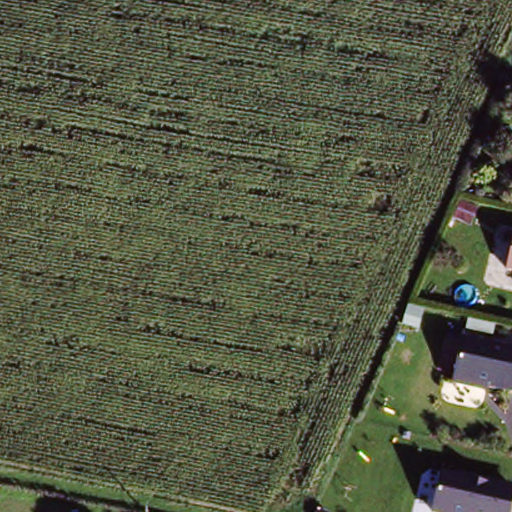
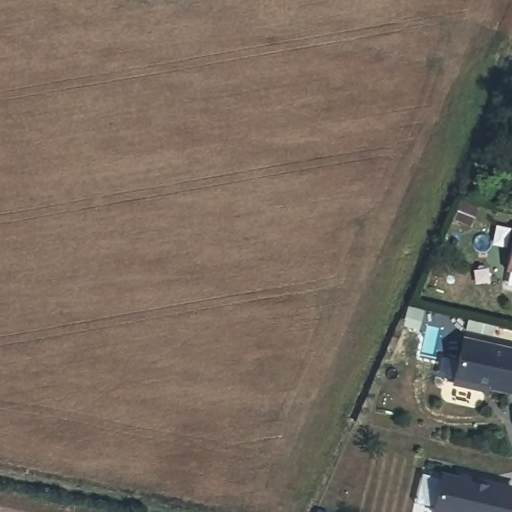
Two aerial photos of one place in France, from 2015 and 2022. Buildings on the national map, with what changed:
unchanged [(512,225),(512,269),(504,267),(512,225)]
unchanged [(512,399),(460,391),(467,344),(512,353),(512,399)]
unchanged [(512,488),(512,510),(512,512),(432,512),(442,472),(512,488)]

